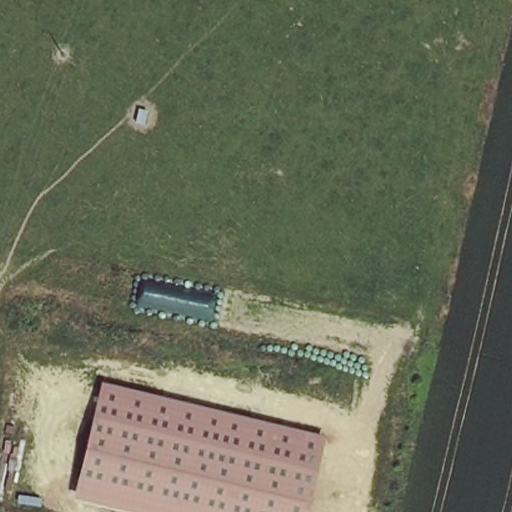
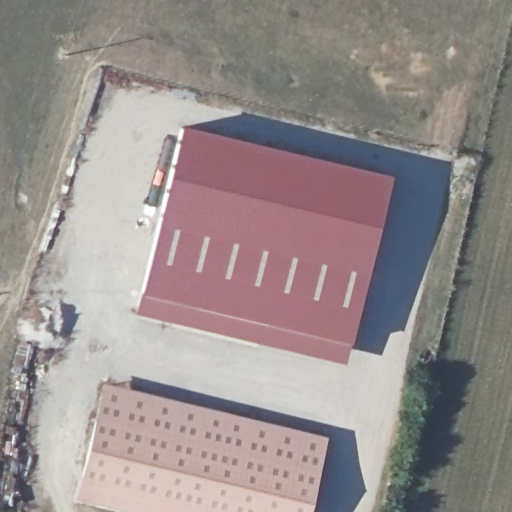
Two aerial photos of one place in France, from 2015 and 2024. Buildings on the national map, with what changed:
new [(144,257),(179,124),(391,174),(379,233),(346,366),(217,338),(131,316),(144,257)]
new [(102,382),(327,437),(318,471),(93,417),(102,382)]
unchanged [(307,512),(130,512),(74,498),(93,417),(318,471),(307,512)]

